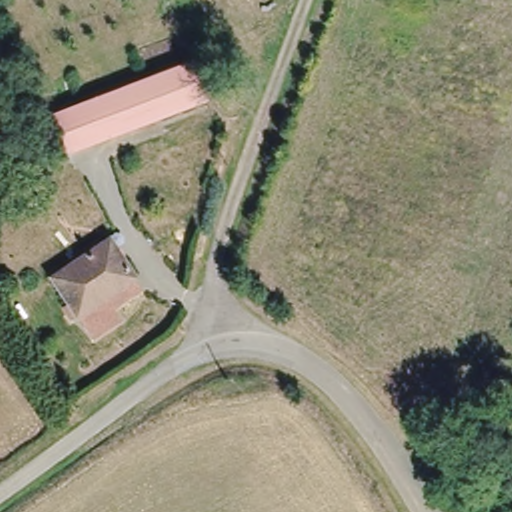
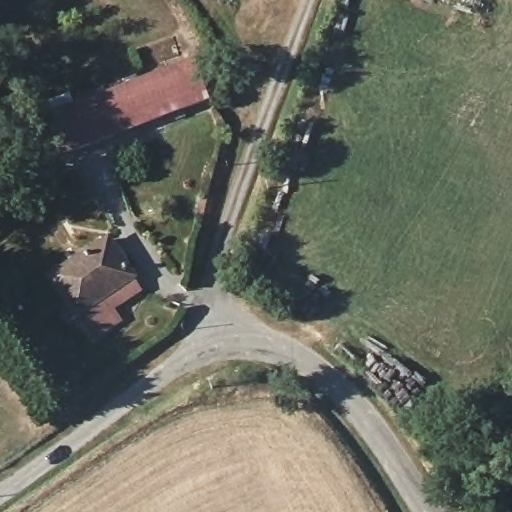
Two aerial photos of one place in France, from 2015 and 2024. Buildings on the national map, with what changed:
unchanged [(195,62),(210,98),(69,149),(56,110),(195,62)]
unchanged [(58,299),(65,295),(51,271),(113,238),(137,290),(109,306),(116,318),(84,334),(72,308),(66,312),(58,299)]

